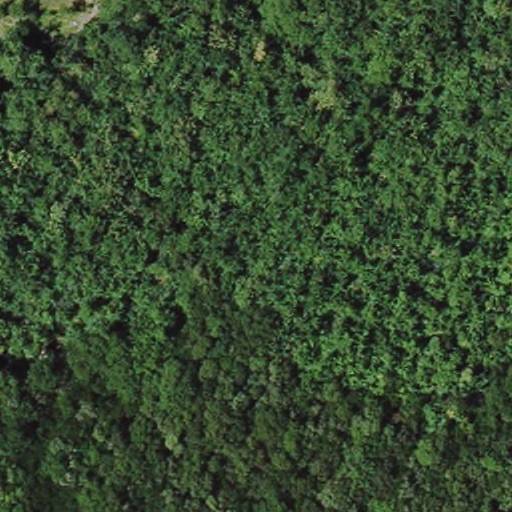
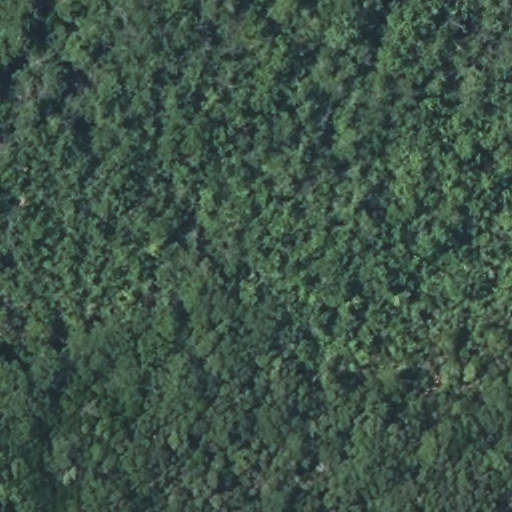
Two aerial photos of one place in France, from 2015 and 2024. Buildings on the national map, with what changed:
unchanged [(77,359),(57,388),(30,371),(52,343),(77,359)]

